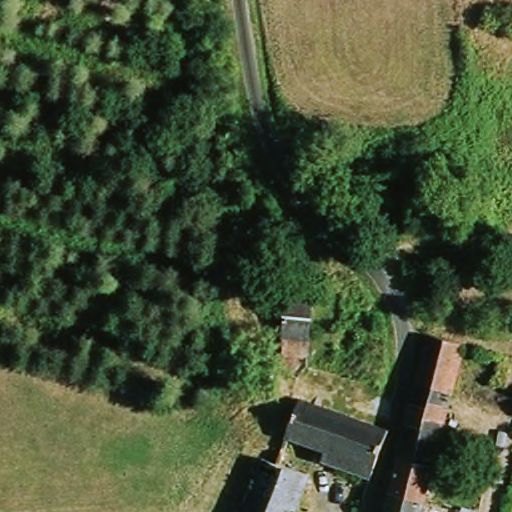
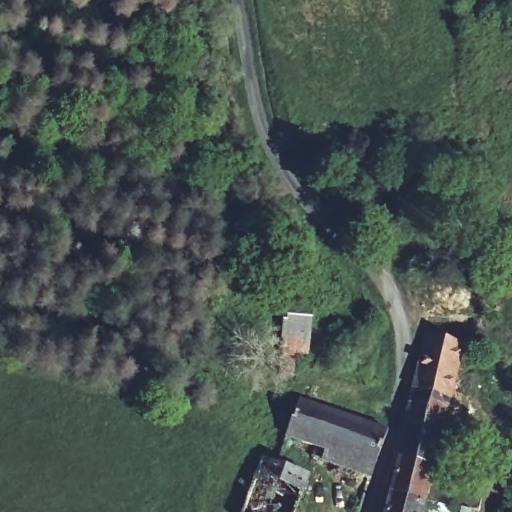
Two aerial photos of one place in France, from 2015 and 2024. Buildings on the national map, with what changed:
unchanged [(297,295),(319,297),(310,365),(302,363),(300,383),(285,381),(297,295)]
unchanged [(410,425),(418,390),(425,367),(433,337),(469,347),(466,357),(460,376),(455,393),(455,399),(445,434),(410,425)]
unchanged [(386,467),(291,436),(302,405),(396,436),(386,467)]
unchanged [(445,434),(427,499),(391,490),(410,425),(445,434)]
unchanged [(282,460),(315,471),(300,512),(246,512),(266,455),(282,460)]
unchanged [(423,512),(386,512),(391,490),(427,499),(423,512)]

